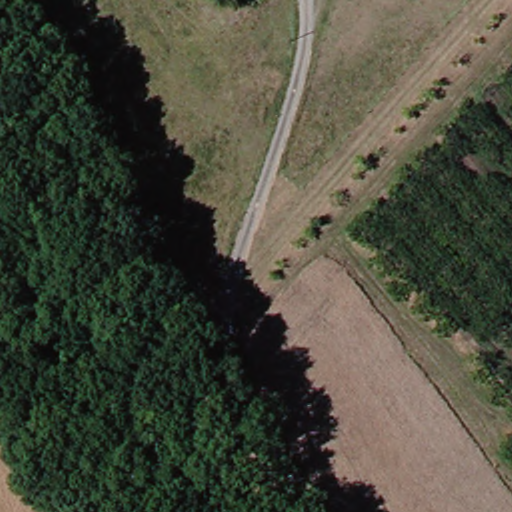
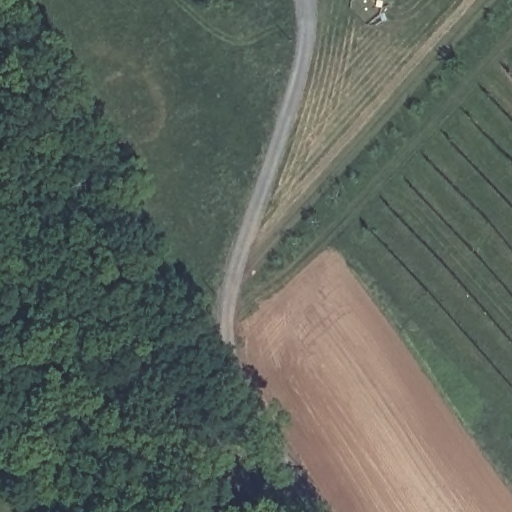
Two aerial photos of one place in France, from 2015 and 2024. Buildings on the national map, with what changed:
[]

